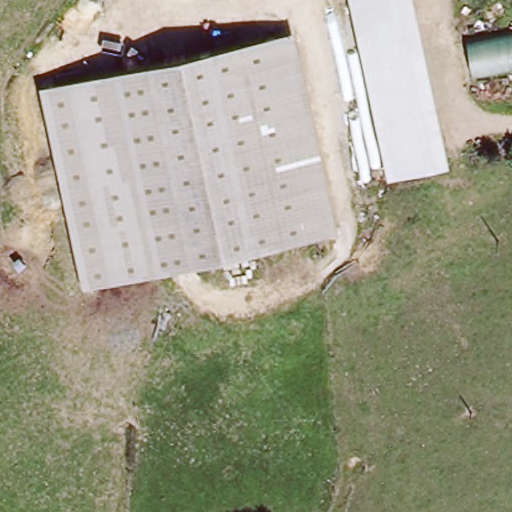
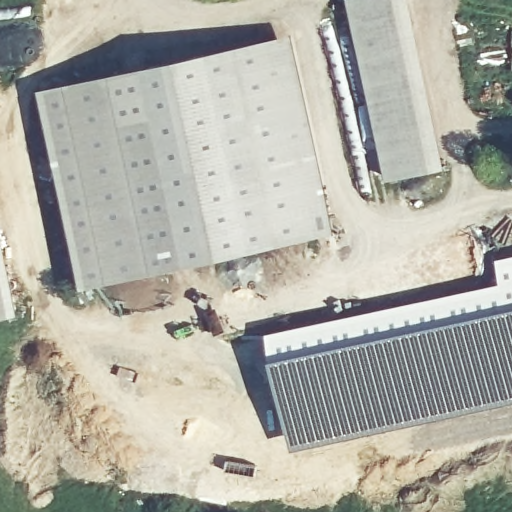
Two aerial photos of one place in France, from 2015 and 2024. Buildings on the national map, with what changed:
unchanged [(346,1),(349,0),(407,0),(448,168),(389,182),(346,1)]
unchanged [(334,231),(316,236),(268,39),(287,35),(334,231)]
unchanged [(268,39),(316,236),(191,268),(184,242),(223,241),(258,41),(268,39)]
unchanged [(143,68),(258,41),(223,241),(184,242),(143,68)]
unchanged [(86,290),(42,90),(143,68),(184,242),(191,268),(86,290)]
new [(0,318),(0,197),(25,312),(0,318)]
new [(503,279),(498,256),(512,253),(512,401),(366,432),(296,449),(269,329),(503,279)]

